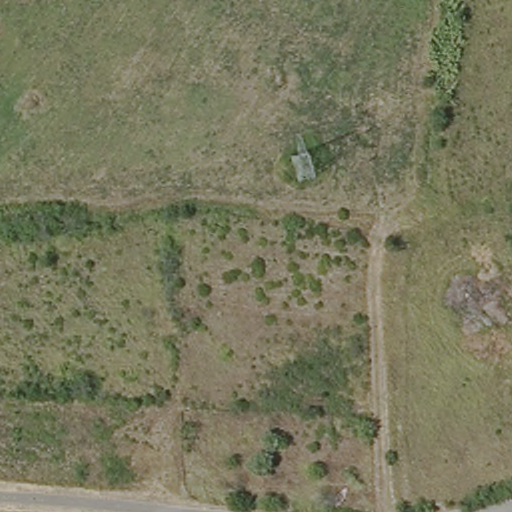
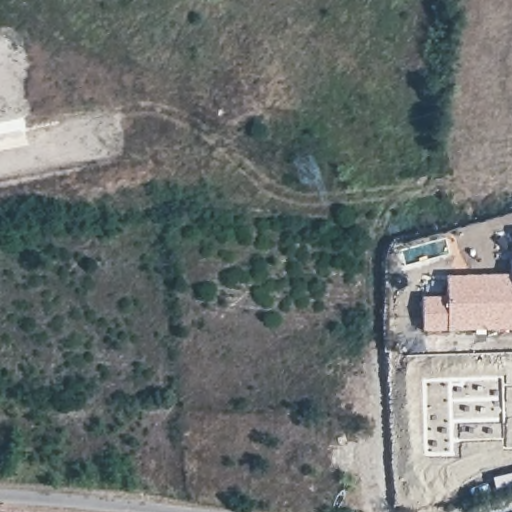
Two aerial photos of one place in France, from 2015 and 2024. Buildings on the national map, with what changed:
new [(512,270),(512,329),(503,329),(446,329),(422,329),(421,294),(445,293),(445,273),(512,270)]
new [(501,384),(512,384),(512,445),(501,446),(500,437),(452,438),(451,452),(422,451),(420,377),(501,373),(501,384)]

